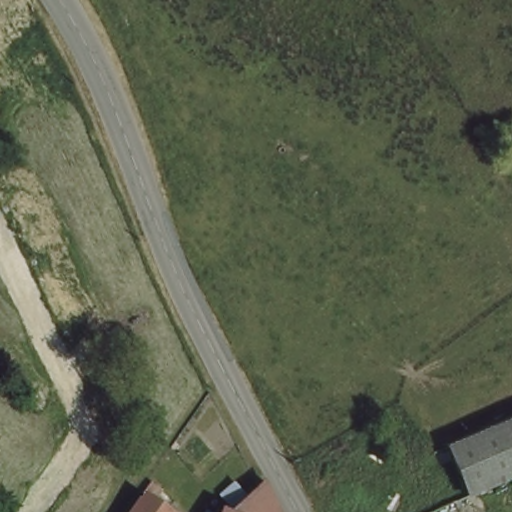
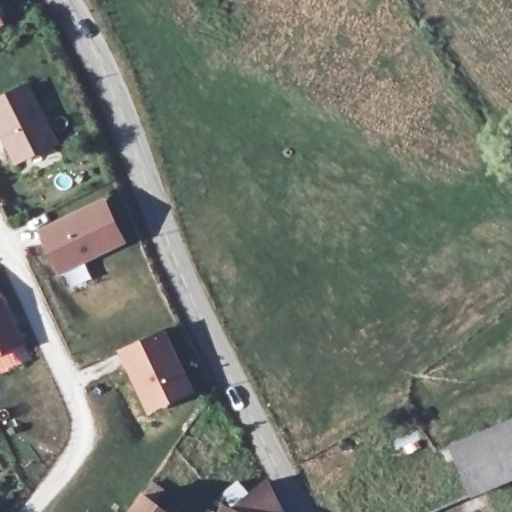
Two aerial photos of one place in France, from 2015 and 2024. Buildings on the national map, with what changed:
new [(0,28),(0,15),(5,26),(0,28)]
new [(57,144),(13,166),(0,139),(0,95),(29,82),(57,144)]
new [(105,197),(126,244),(59,276),(36,230),(105,197)]
new [(0,351),(0,304),(20,340),(0,351)]
new [(165,328),(195,391),(146,415),(116,351),(165,328)]
unchanged [(475,494),(453,443),(512,419),(512,478),(475,494)]
unchanged [(221,512),(226,508),(265,477),(284,512),(221,512)]
unchanged [(171,512),(133,512),(146,493),(171,512)]
unchanged [(219,512),(211,512),(212,510),(219,512)]

